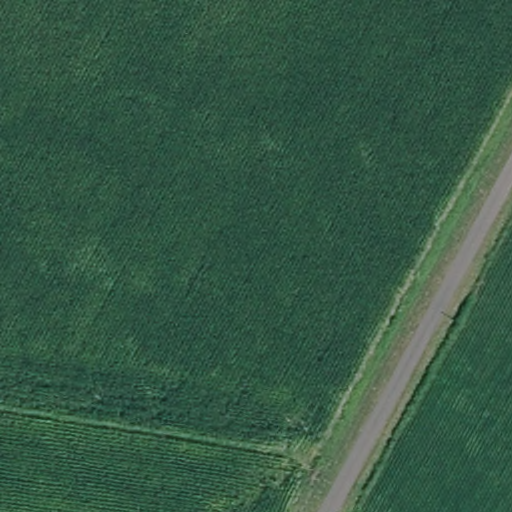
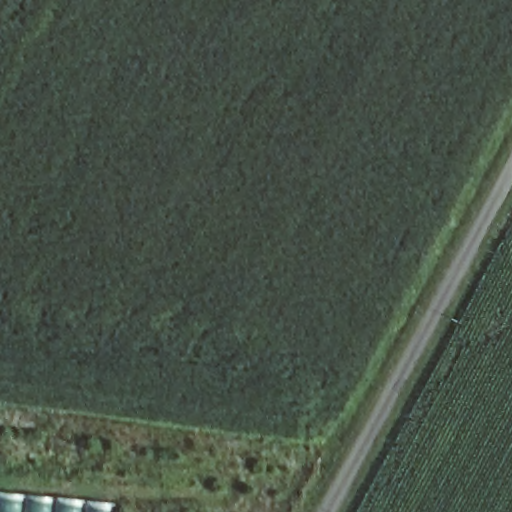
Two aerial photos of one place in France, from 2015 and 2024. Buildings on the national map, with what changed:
new [(107,512),(0,512),(0,493),(107,503),(107,512)]

